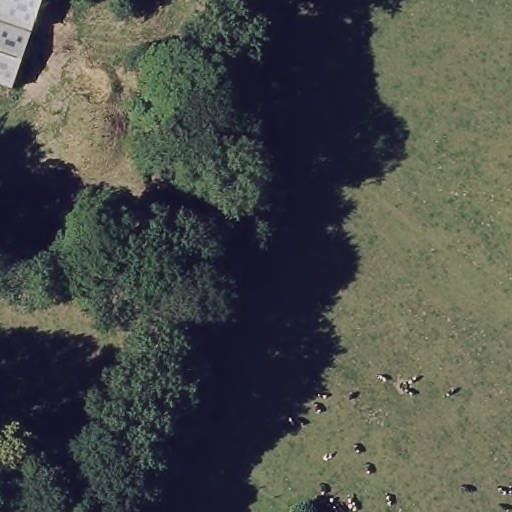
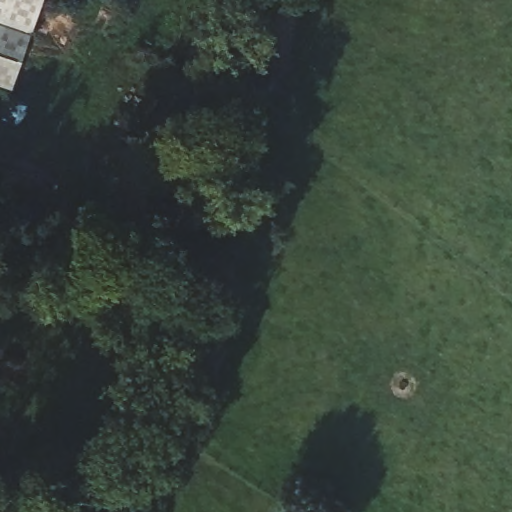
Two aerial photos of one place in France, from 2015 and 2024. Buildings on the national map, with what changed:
unchanged [(10,90),(0,86),(0,0),(41,0),(10,90)]

